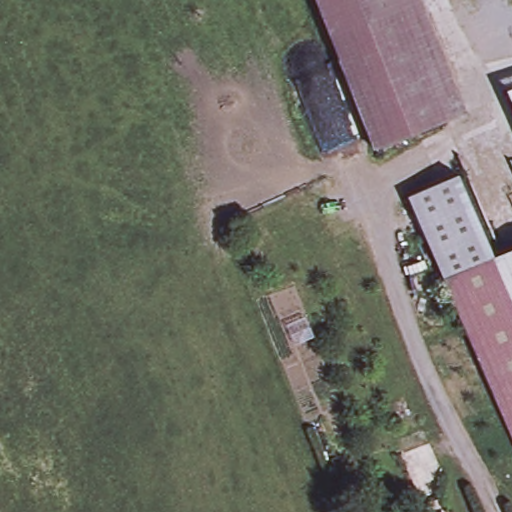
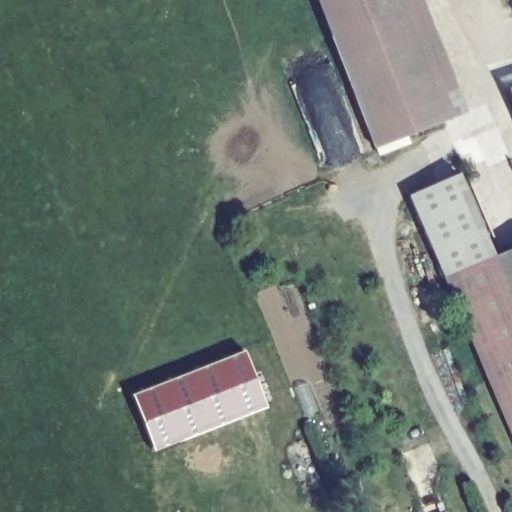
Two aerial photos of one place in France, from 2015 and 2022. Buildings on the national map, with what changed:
unchanged [(457,114),(385,142),(328,0),(411,0),(457,114)]
new [(507,88),(512,86),(512,100),(507,88)]
unchanged [(465,176),(500,258),(450,279),(415,196),(465,176)]
unchanged [(450,279),(500,258),(512,253),(512,425),(450,279)]
new [(132,395),(245,351),(267,407),(153,450),(132,395)]

